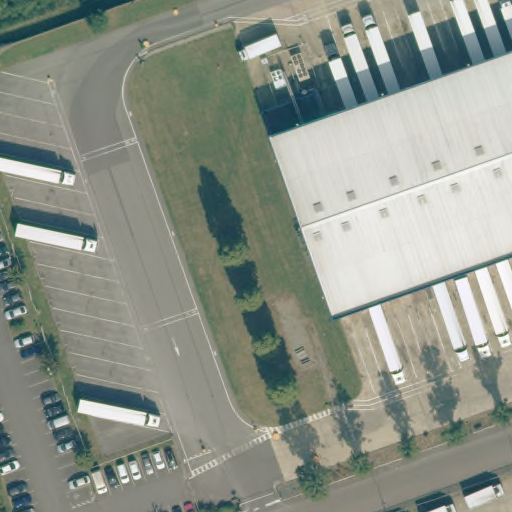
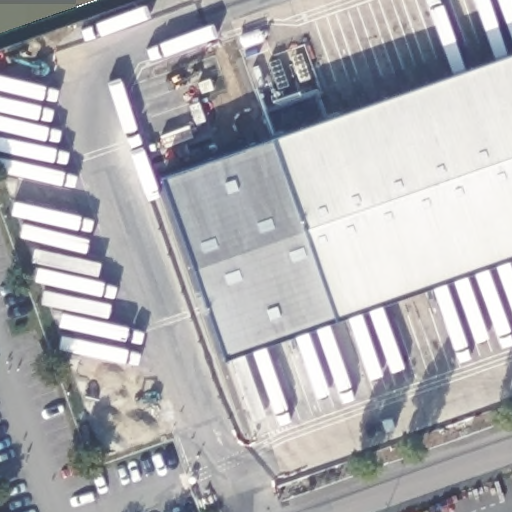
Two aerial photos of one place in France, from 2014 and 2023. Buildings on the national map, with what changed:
unchanged [(319,119),(512,51),(512,255),(330,319),(257,111),(309,93),(319,119)]
new [(223,356),(160,177),(266,138),(330,319),(223,356)]

